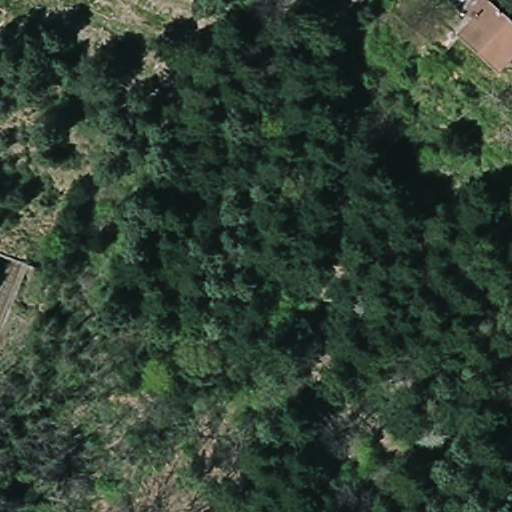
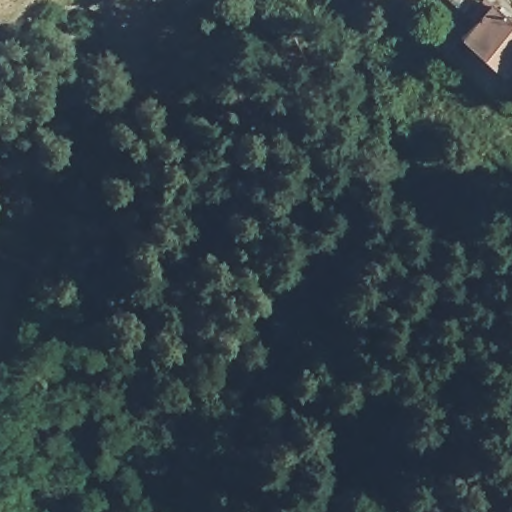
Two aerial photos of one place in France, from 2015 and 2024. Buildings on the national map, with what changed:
unchanged [(487,0),(495,7),(475,26),(449,0),(487,0)]
unchanged [(465,37),(475,26),(495,7),(512,25),(512,62),(500,74),(465,37)]

